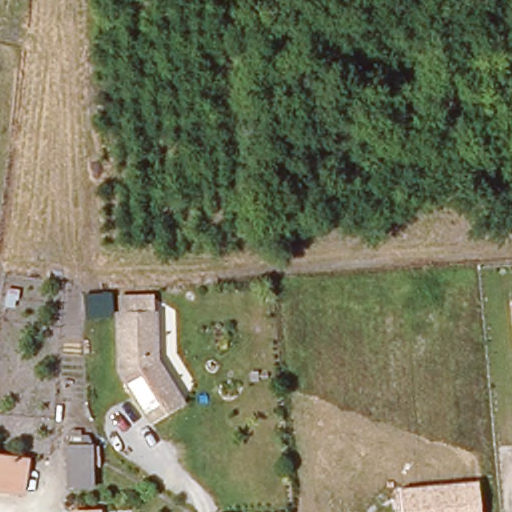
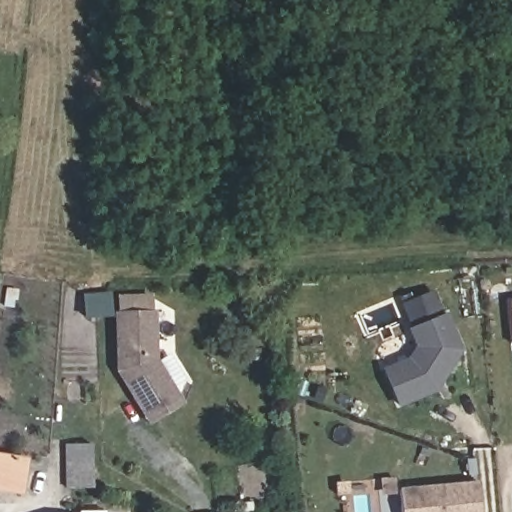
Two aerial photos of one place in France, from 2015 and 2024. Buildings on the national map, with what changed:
unchanged [(511,302),(512,302),(512,308),(511,302)]
unchanged [(147,423),(139,410),(117,370),(115,310),(154,310),(155,358),(172,391),(179,403),(147,423)]
new [(384,369),(407,359),(415,346),(408,328),(448,312),(462,350),(437,392),(400,408),(384,369)]
unchanged [(95,489),(67,488),(65,447),(92,443),(95,489)]
unchanged [(17,496),(0,493),(0,460),(22,464),(17,496)]
unchanged [(480,512),(398,512),(395,487),(478,480),(480,512)]

